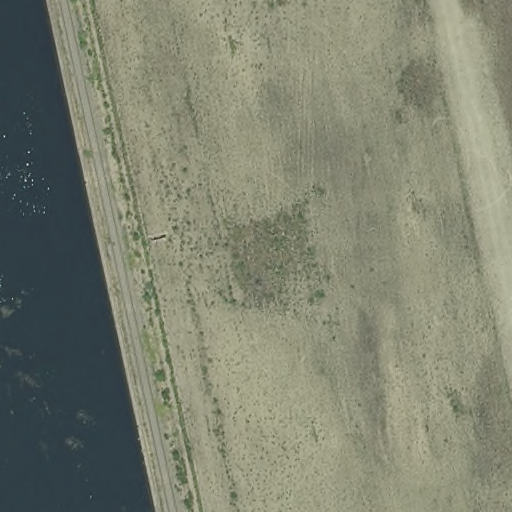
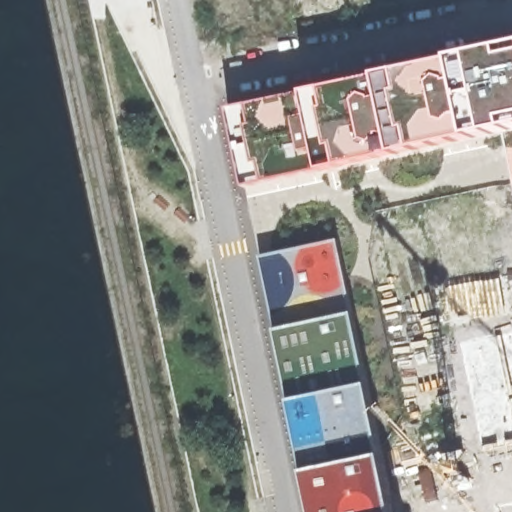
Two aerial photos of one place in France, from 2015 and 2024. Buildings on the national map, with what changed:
new [(512,44),(512,126),(227,187),(214,101),(512,44)]
new [(337,243),(389,492),(313,507),(263,256),(337,243)]

